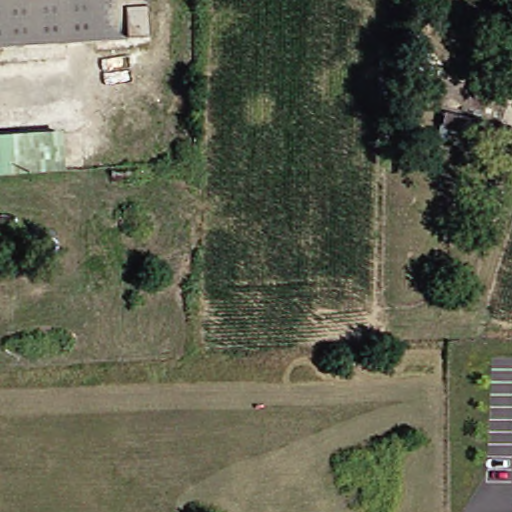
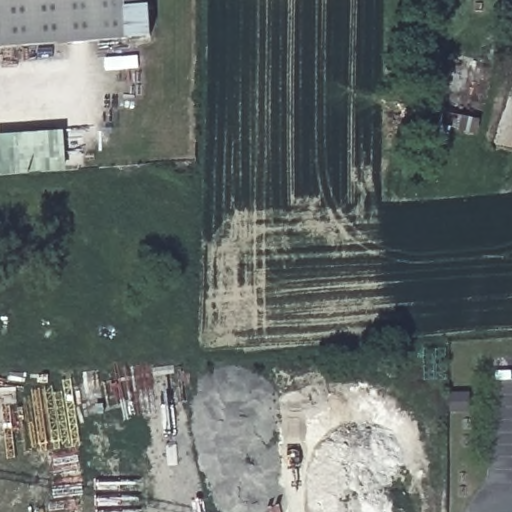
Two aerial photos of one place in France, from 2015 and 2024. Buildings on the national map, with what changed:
unchanged [(0,51),(0,0),(153,0),(156,41),(0,51)]
unchanged [(61,171),(9,173),(8,138),(60,134),(61,171)]

